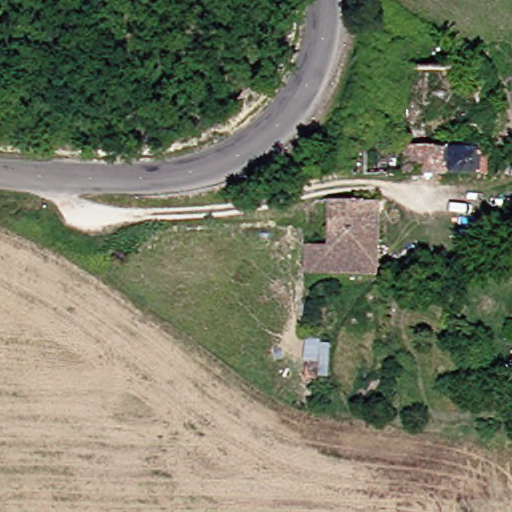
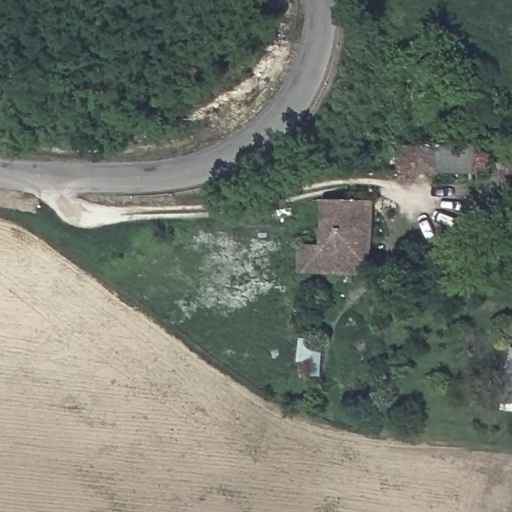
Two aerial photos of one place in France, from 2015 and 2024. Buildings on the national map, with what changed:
unchanged [(411,87),(400,88),(401,66),(487,69),(489,157),(502,157),(504,172),(457,171),(457,147),(413,146),(411,87)]
unchanged [(415,171),(375,170),(374,140),(388,139),(388,146),(413,146),(415,171)]
unchanged [(415,171),(413,146),(457,147),(457,171),(415,171)]
unchanged [(338,199),(372,200),(385,200),(386,226),(385,250),(337,248),(338,199)]
unchanged [(315,278),(316,250),(337,248),(385,250),(385,277),(315,278)]

